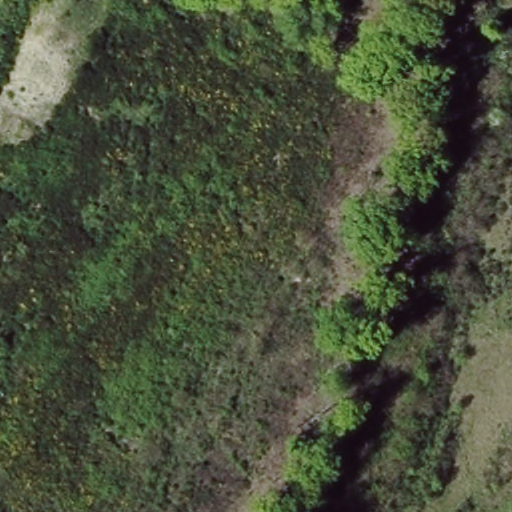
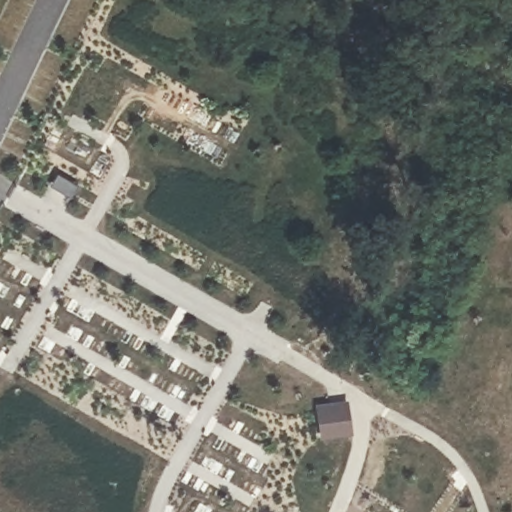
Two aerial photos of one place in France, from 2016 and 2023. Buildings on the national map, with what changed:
new [(346,402),(350,434),(319,438),(315,406),(346,402)]

